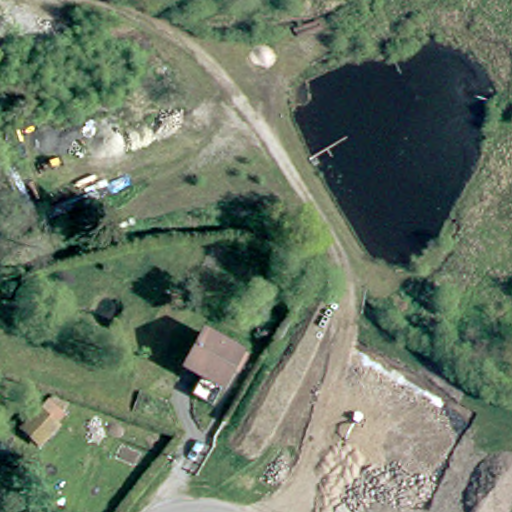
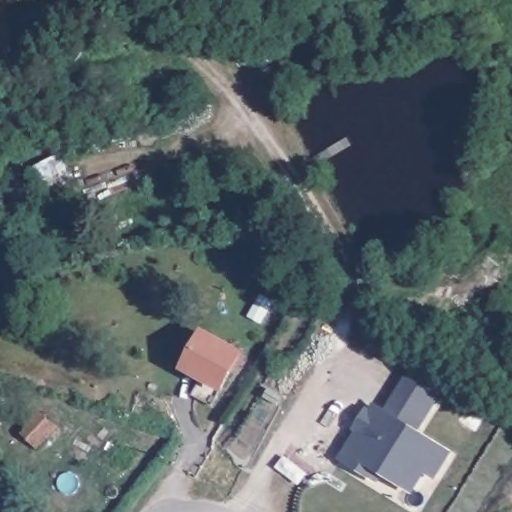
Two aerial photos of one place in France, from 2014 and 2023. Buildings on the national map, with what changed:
unchanged [(229,370),(224,367),(202,403),(185,392),(192,372),(177,363),(197,329),(238,355),(229,370)]
new [(444,393),(420,431),(452,452),(435,481),(426,475),(413,495),(385,477),(379,484),(339,459),(356,434),(352,432),(367,408),(372,410),(375,403),(387,410),(410,371),(444,393)]
unchanged [(58,429),(39,449),(20,433),(40,412),(58,429)]

